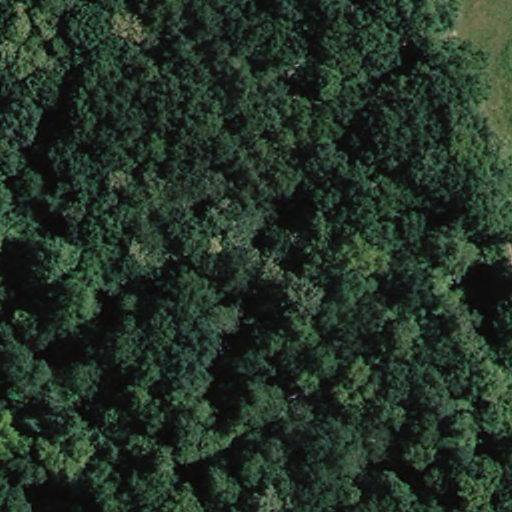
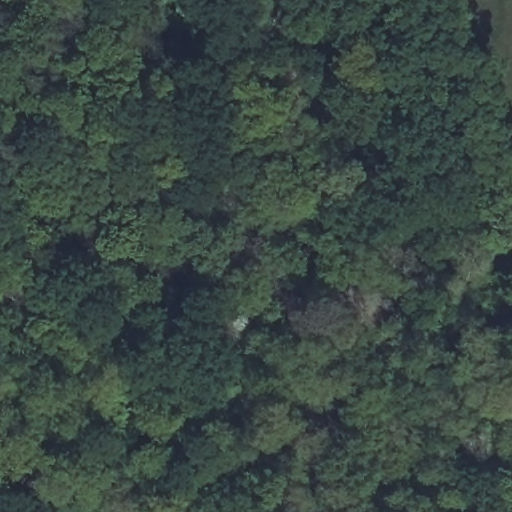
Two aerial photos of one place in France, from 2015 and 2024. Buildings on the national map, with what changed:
[]

